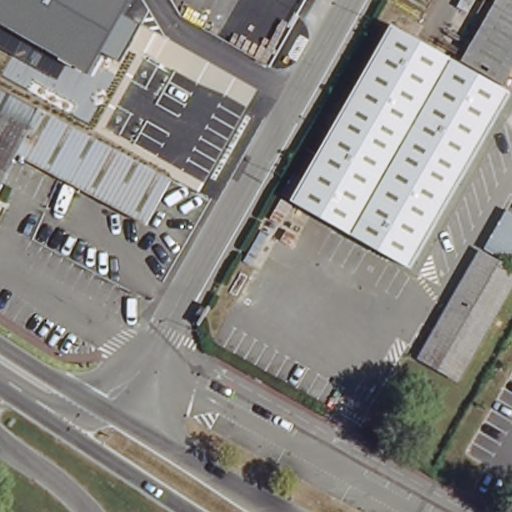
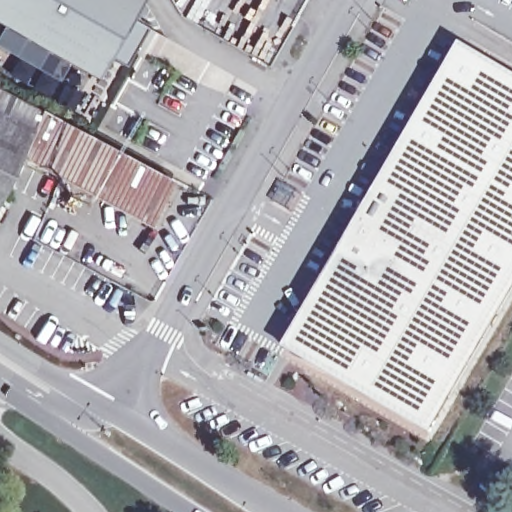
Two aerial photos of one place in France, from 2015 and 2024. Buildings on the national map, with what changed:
unchanged [(103,47),(87,75),(0,25),(0,0),(131,0),(118,21),(140,34),(125,60),(103,47)]
demolished [(499,0),(512,0),(512,88),(510,93),(463,67),(499,0)]
demolished [(411,268),(295,202),(393,27),(419,42),(427,47),(463,67),(510,93),(411,268)]
new [(463,46),(512,75),(512,295),(430,436),(286,352),(463,46)]
unchanged [(147,224),(20,155),(0,190),(0,90),(170,180),(147,224)]
unchanged [(0,218),(0,206),(7,209),(0,218)]
demolished [(495,269),(497,265),(482,257),(505,217),(512,221),(512,273),(503,268),(500,272),(512,279),(512,287),(457,383),(422,363),(481,261),(495,269)]

